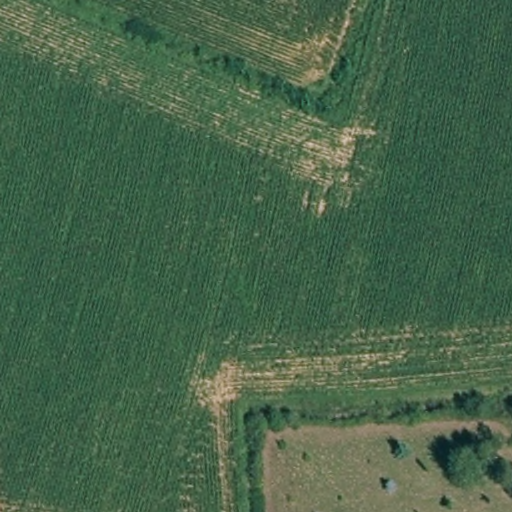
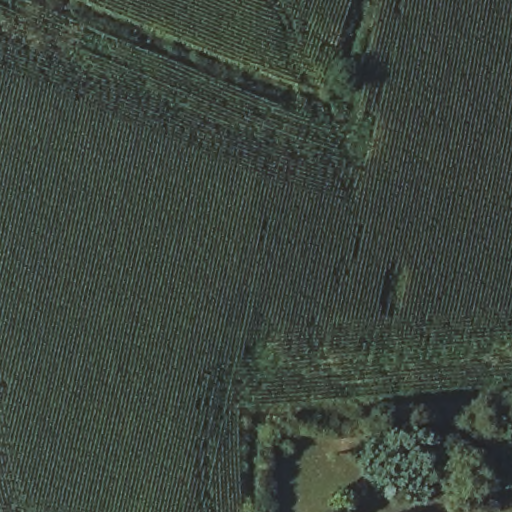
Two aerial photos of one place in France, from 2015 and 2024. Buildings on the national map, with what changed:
[]

